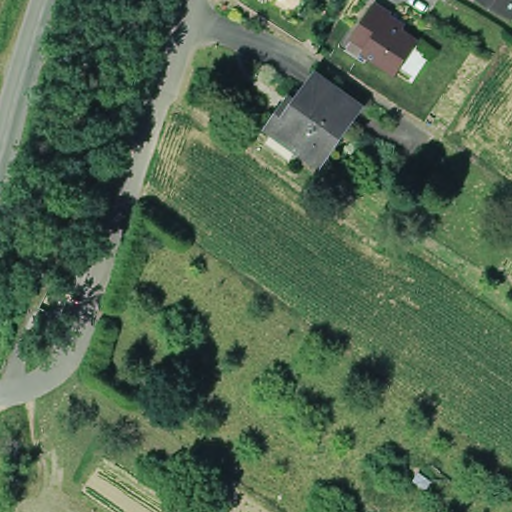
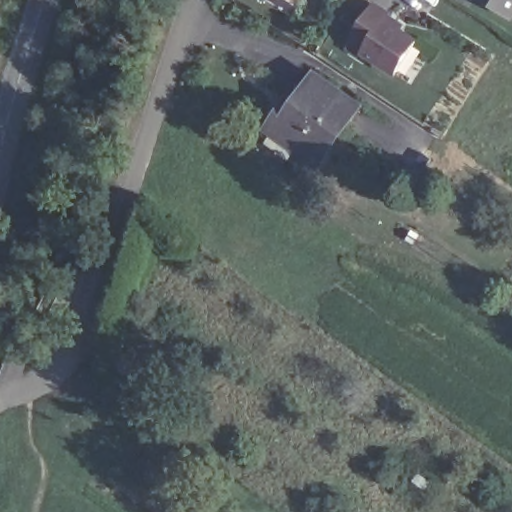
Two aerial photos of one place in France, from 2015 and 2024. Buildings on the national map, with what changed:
unchanged [(512,0),(512,17),(484,0),(512,0)]
unchanged [(367,6),(392,22),(390,27),(412,41),(390,74),(357,52),(360,47),(346,37),(367,6)]
unchanged [(362,106),(322,162),(275,129),(288,111),(295,100),(301,104),(321,76),(362,106)]

